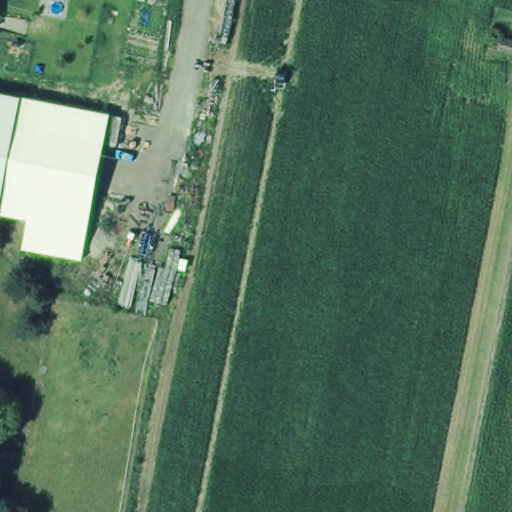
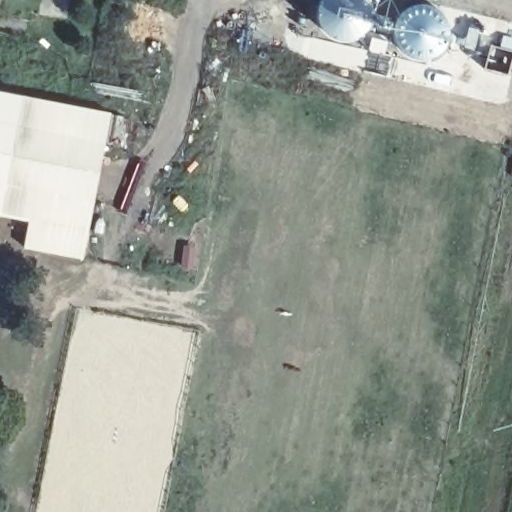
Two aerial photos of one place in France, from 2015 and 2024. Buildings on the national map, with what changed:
new [(318,5),(321,0),(370,0),(372,5),(373,14),(372,22),(368,30),(362,36),(354,40),(345,42),(337,40),(328,36),(322,30),(318,22),(317,14),(318,5)]
new [(395,24),(398,15),(405,9),(413,5),(422,4),(431,5),(439,9),(445,15),(450,24),(451,32),(450,41),(445,50),(439,56),(431,60),(422,61),(413,60),(405,56),(398,50),(395,41),(393,32),(395,24)]
unchanged [(22,95),(111,114),(122,115),(117,145),(105,142),(82,259),(23,247),(29,219),(0,215),(0,91),(22,95)]

